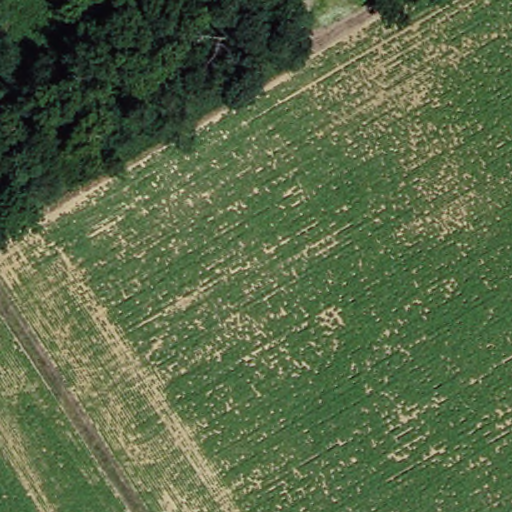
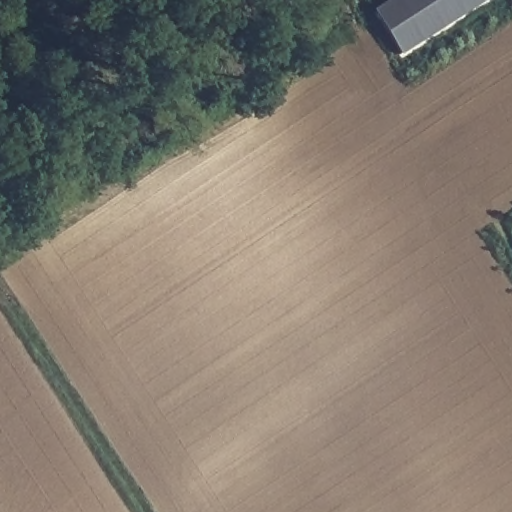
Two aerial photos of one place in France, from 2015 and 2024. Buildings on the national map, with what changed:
new [(485,0),(400,54),(373,13),(393,0),(485,0)]

